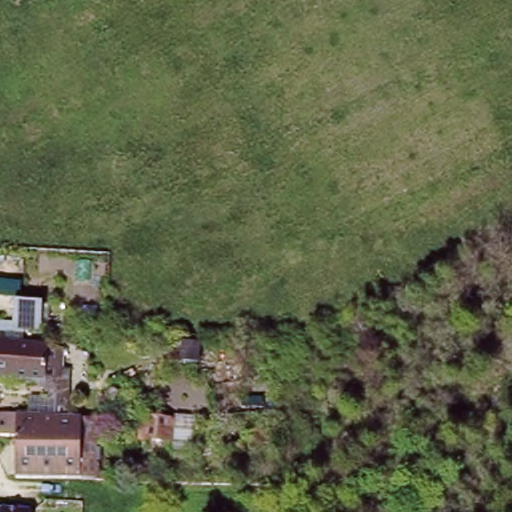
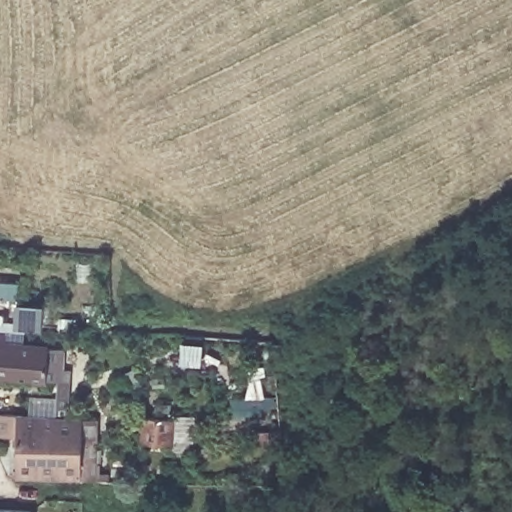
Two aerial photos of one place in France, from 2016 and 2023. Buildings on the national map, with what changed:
unchanged [(25,340),(0,338),(0,320),(28,321),(25,340)]
unchanged [(60,375),(45,375),(45,376),(0,374),(0,338),(62,342),(60,375)]
unchanged [(45,375),(60,375),(71,380),(67,417),(30,415),(30,392),(40,392),(40,376),(45,376),(45,375)]
unchanged [(17,435),(0,435),(0,414),(18,415),(67,417),(87,418),(102,418),(101,438),(99,477),(85,476),(16,473),(17,435)]
unchanged [(34,512),(0,512),(0,500),(34,502),(34,512)]

